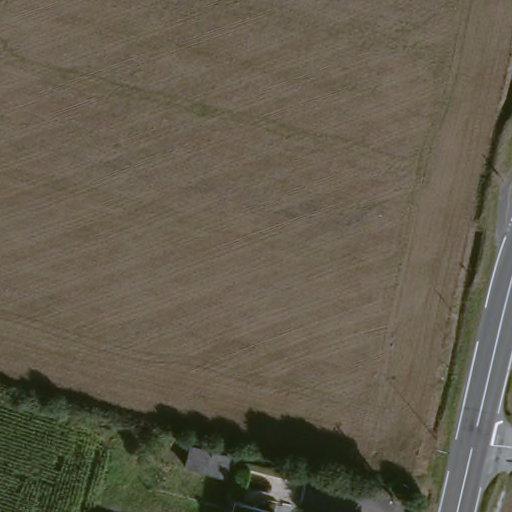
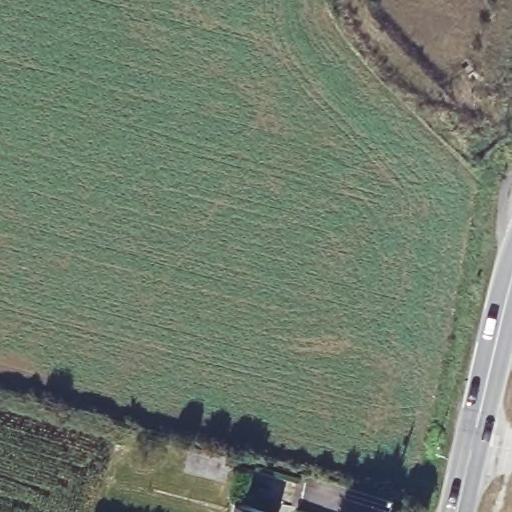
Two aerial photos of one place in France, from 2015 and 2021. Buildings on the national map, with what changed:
unchanged [(197,453),(235,464),(232,479),(194,471),(197,453)]
unchanged [(385,494),(381,512),(365,507),(367,491),(385,494)]
unchanged [(239,504),(273,512),(237,512),(239,504)]

